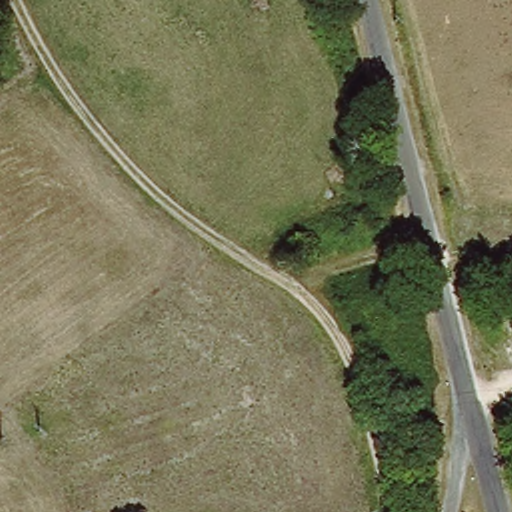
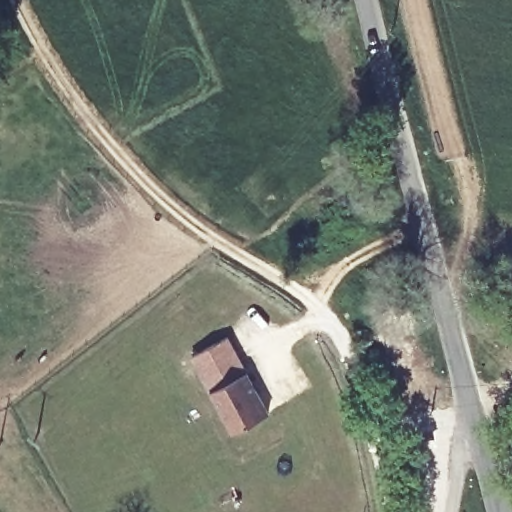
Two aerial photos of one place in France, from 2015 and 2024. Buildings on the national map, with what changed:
new [(230,336),(271,412),(236,431),(195,354),(230,336)]

